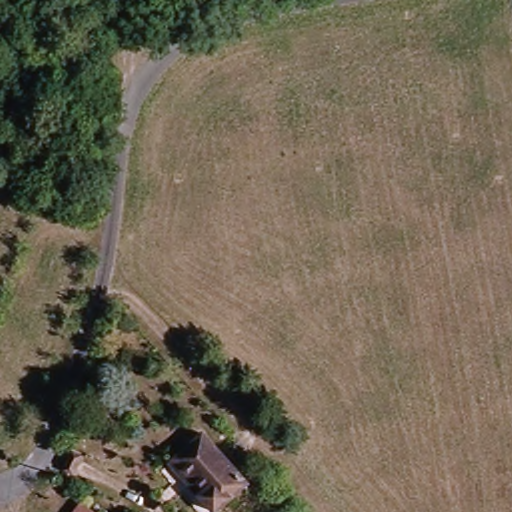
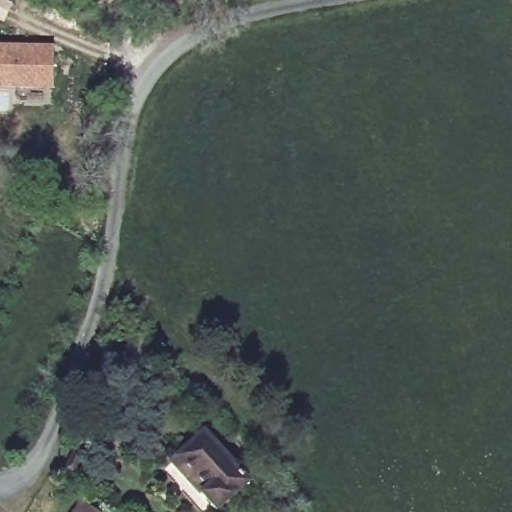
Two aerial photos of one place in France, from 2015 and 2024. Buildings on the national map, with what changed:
new [(0,90),(0,47),(51,47),(51,90),(0,90)]
unchanged [(193,472),(181,460),(206,434),(252,482),(221,512),(206,497),(187,477),(193,472)]
unchanged [(83,500),(98,512),(73,512),(83,500)]

